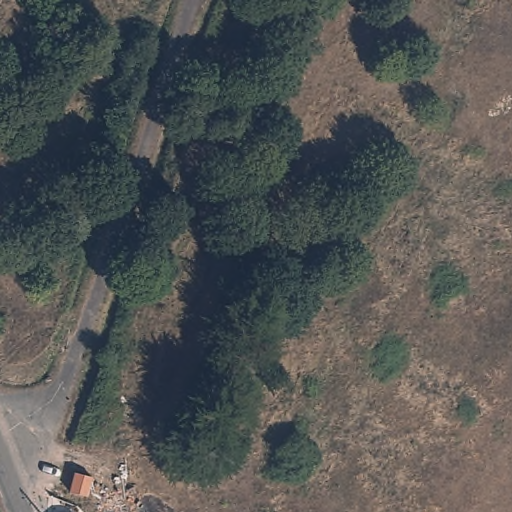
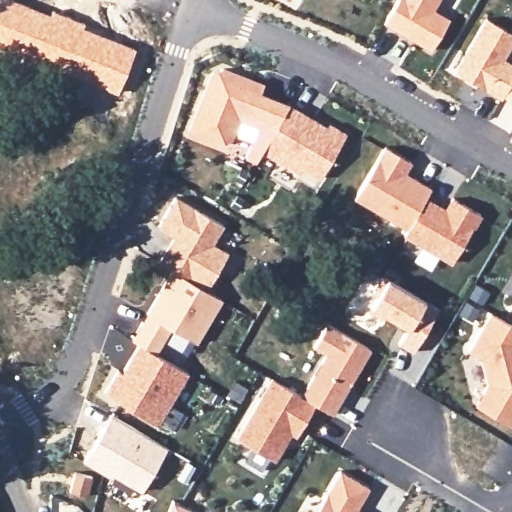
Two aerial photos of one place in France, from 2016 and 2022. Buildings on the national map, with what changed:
new [(439,0),(434,10),(449,19),(431,51),(383,24),(397,0),(439,0)]
new [(485,17),(512,33),(512,44),(503,60),(512,64),(512,102),(503,96),(501,100),(453,71),(485,17)]
new [(210,71),(222,67),(264,83),(260,93),(287,103),(326,125),(328,124),(345,131),(319,180),(303,171),(301,176),(260,154),(255,164),(242,160),(251,142),(232,135),(230,141),(214,146),(185,135),(210,71)]
new [(402,235),(405,230),(352,199),(383,146),(412,163),(406,173),(431,189),(425,199),(428,202),(407,237),(402,235)]
new [(116,370),(122,372),(136,345),(130,340),(171,270),(160,263),(172,237),(155,227),(175,196),(222,225),(212,244),(227,251),(206,290),(222,300),(197,345),(169,327),(157,353),(187,372),(157,426),(102,394),(116,370)]
new [(428,202),(448,214),(456,201),(483,218),(456,266),(407,237),(428,202)]
new [(370,305),(375,298),(371,295),(382,276),(387,278),(425,301),(437,309),(412,353),(396,345),(405,328),(384,316),(382,321),(367,312),(370,305)]
new [(512,303),(512,309),(509,307),(512,303)]
new [(512,327),(512,425),(511,427),(473,404),(486,385),(480,360),(467,350),(489,313),(512,327)]
new [(325,355),(312,348),(327,323),(371,350),(332,415),(315,403),(313,406),(301,398),(325,355)]
new [(271,380),(313,406),(295,437),(288,433),(272,462),(235,441),(271,380)]
new [(110,414),(166,447),(140,492),(112,476),(111,479),(82,462),(110,414)]
new [(340,470),(369,488),(357,510),(360,512),(314,512),(340,470)]
unchanged [(67,493),(72,473),(89,477),(85,497),(67,493)]
unchanged [(173,502),(191,509),(189,512),(170,512),(173,502)]

